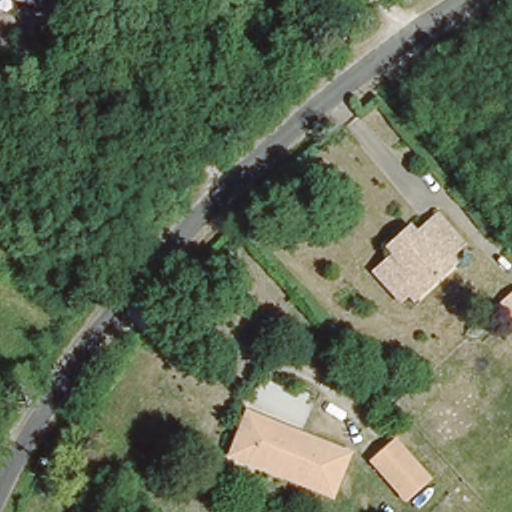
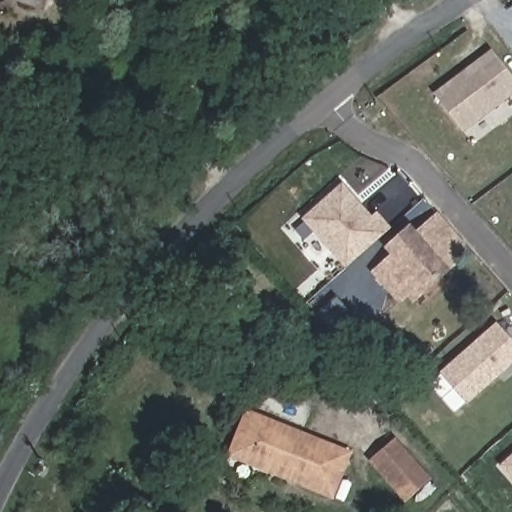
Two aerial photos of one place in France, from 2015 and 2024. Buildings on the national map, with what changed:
new [(460,133),(432,94),(490,50),(512,77),(512,94),(460,133)]
new [(299,220),(340,183),(371,217),(377,212),(390,229),(344,270),(299,220)]
demolished [(434,210),(459,240),(449,249),(438,258),(438,266),(434,275),(426,280),(421,277),(413,278),(407,283),(394,294),(369,266),(391,248),(408,233),(434,210)]
new [(439,214),(465,243),(444,261),(444,270),(439,278),(432,284),(427,281),(419,282),(400,298),(375,269),(414,236),(439,214)]
new [(389,243),(407,228),(413,237),(397,251),(389,243)]
demolished [(512,291),(512,313),(501,301),(512,291)]
new [(497,324),(512,341),(512,365),(469,403),(442,375),(497,324)]
unchanged [(348,456),(332,498),(290,482),(292,478),(235,456),(250,419),(348,456)]
unchanged [(373,460),(394,440),(427,476),(408,493),(404,494),(373,460)]
new [(498,467),(512,453),(512,483),(498,467)]

